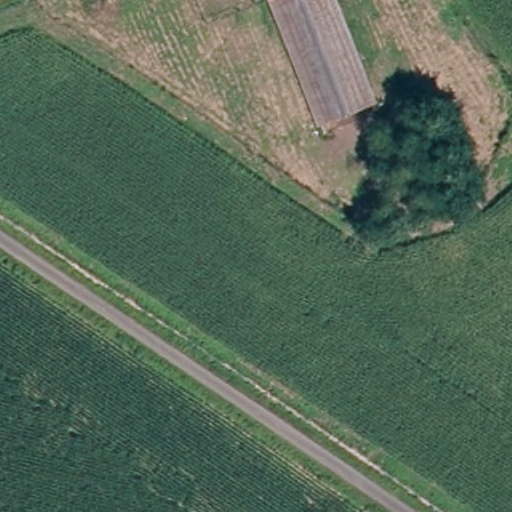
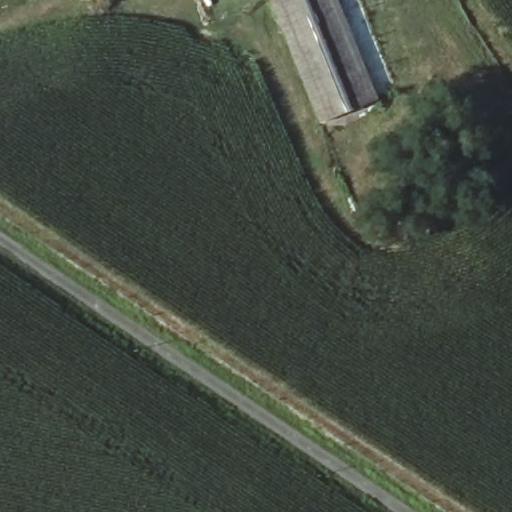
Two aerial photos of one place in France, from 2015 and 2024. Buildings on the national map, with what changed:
unchanged [(320,120),(278,0),(343,0),(377,98),(320,120)]

